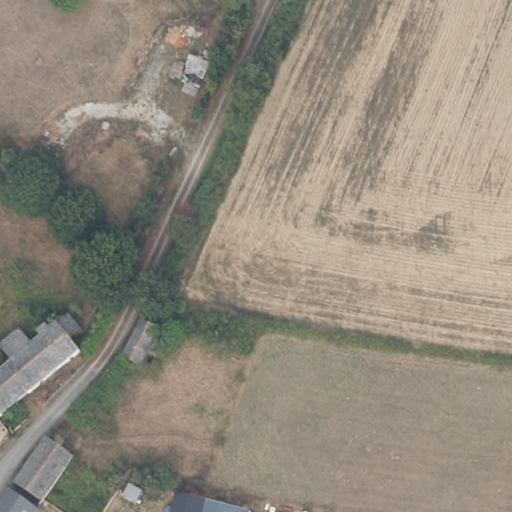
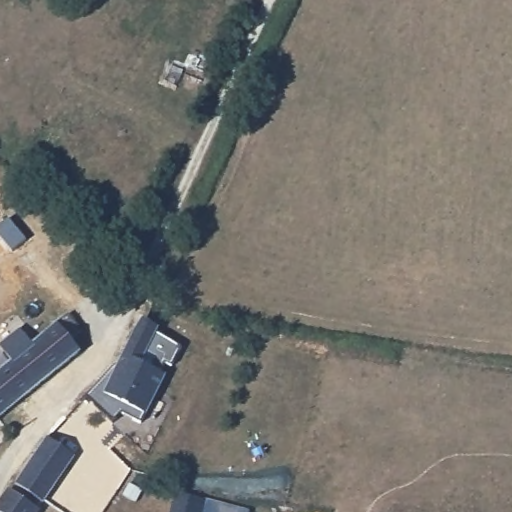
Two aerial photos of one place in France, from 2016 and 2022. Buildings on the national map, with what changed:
new [(121,412),(112,421),(87,397),(115,369),(133,331),(142,317),(158,328),(155,332),(180,346),(171,366),(164,363),(159,372),(165,375),(145,413),(142,422),(121,412)]
unchanged [(0,354),(0,353),(21,336),(32,350),(67,321),(81,337),(70,346),(80,357),(11,415),(0,423),(0,377),(11,367),(0,354)]
demolished [(157,358),(146,353),(140,366),(123,359),(135,330),(141,322),(157,330),(152,340),(163,345),(157,358)]
unchanged [(37,503),(10,485),(42,440),(69,458),(39,501),(37,503)]
unchanged [(5,493),(32,512),(0,512),(0,498),(4,494),(5,493)]
new [(171,512),(175,493),(249,511),(249,512),(171,512)]

